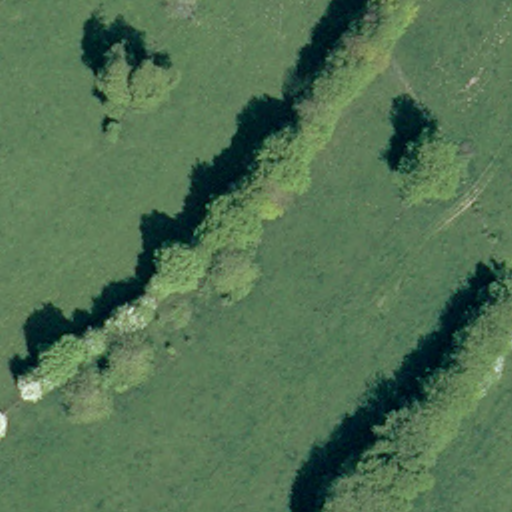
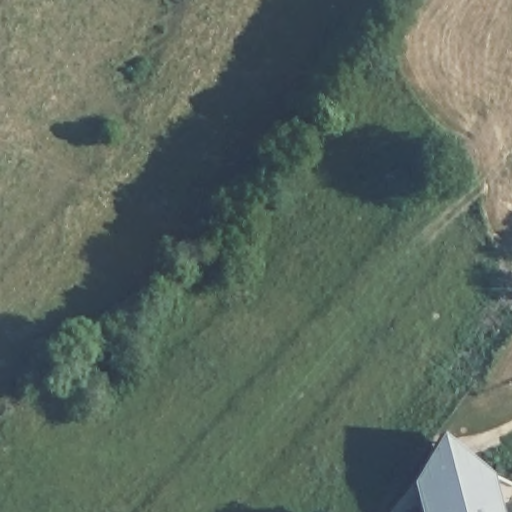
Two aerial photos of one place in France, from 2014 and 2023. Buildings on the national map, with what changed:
new [(412,483),(442,435),(492,475),(501,512),(420,512),(412,483)]

